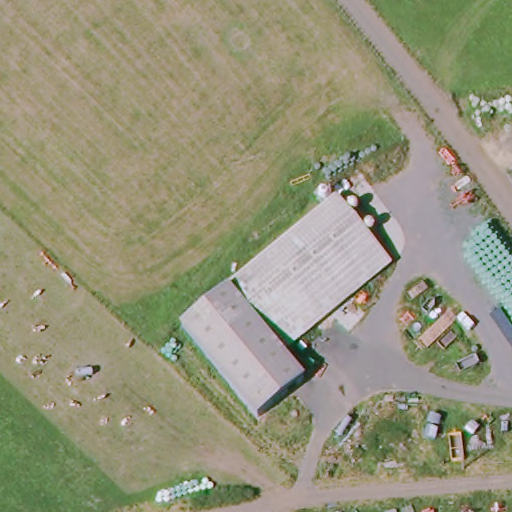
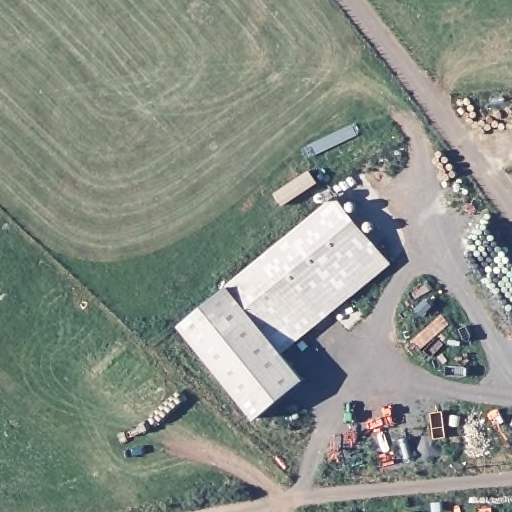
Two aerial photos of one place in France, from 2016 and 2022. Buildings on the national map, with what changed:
unchanged [(179,326),(332,200),(388,267),(282,355),(304,383),(257,420),(179,326)]

